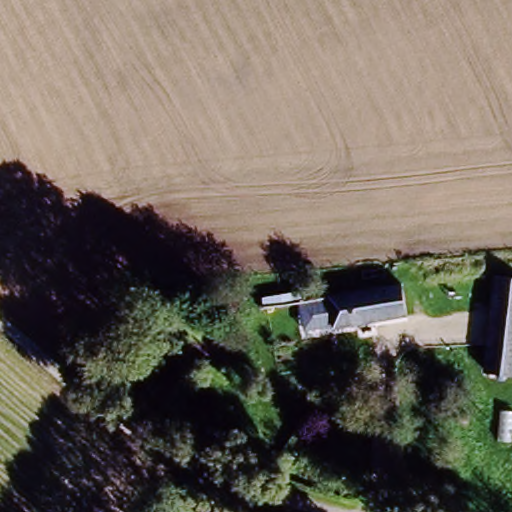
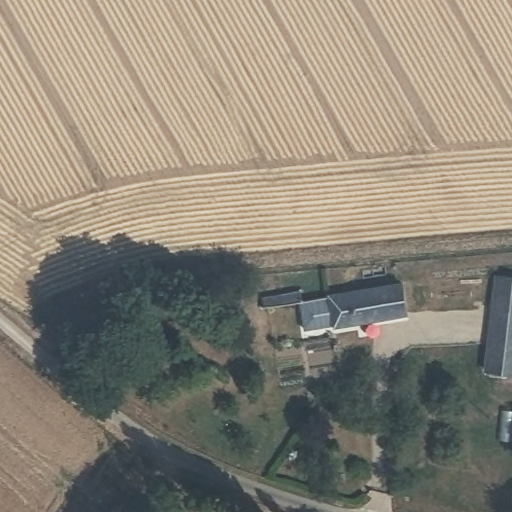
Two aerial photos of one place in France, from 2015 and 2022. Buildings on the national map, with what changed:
unchanged [(483,371),(494,276),(512,278),(512,374),(483,371)]
unchanged [(307,295),(335,290),(408,278),(412,306),(341,319),(312,324),(307,295)]

